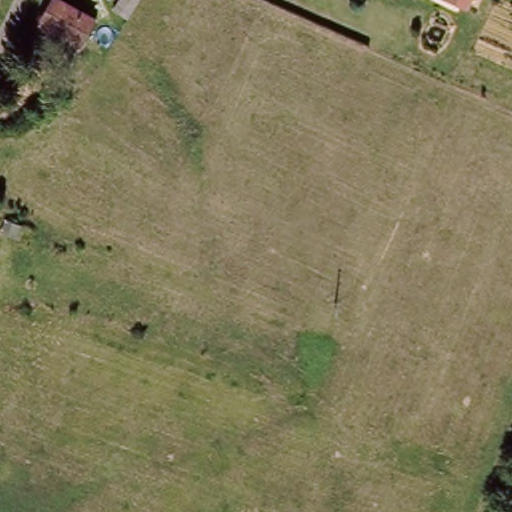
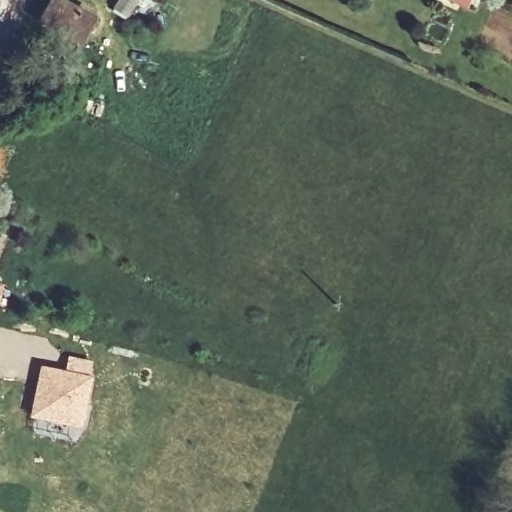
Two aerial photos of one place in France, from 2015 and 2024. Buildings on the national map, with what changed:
unchanged [(40,21),(53,0),(56,0),(93,23),(80,44),(40,21)]
unchanged [(124,19),(108,8),(113,0),(137,0),(124,19)]
new [(1,306),(0,306),(0,285),(6,287),(1,306)]
new [(39,364),(63,369),(67,354),(94,361),(92,376),(80,431),(27,418),(39,364)]

